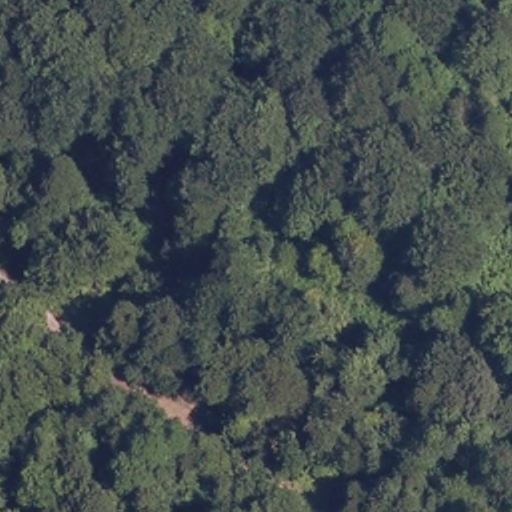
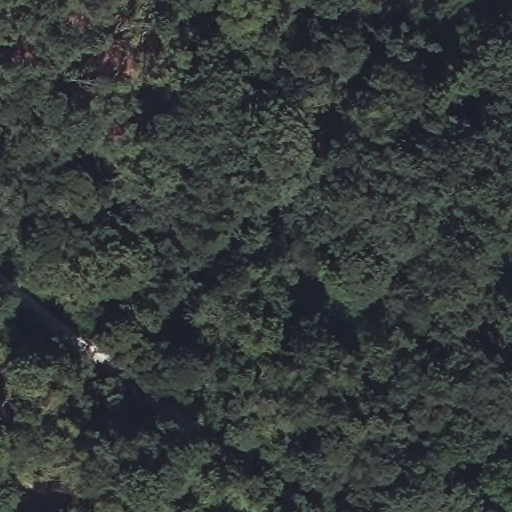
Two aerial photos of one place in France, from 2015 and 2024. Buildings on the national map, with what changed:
[]

